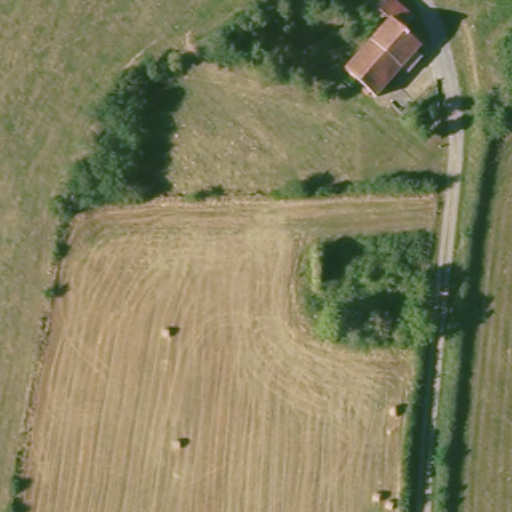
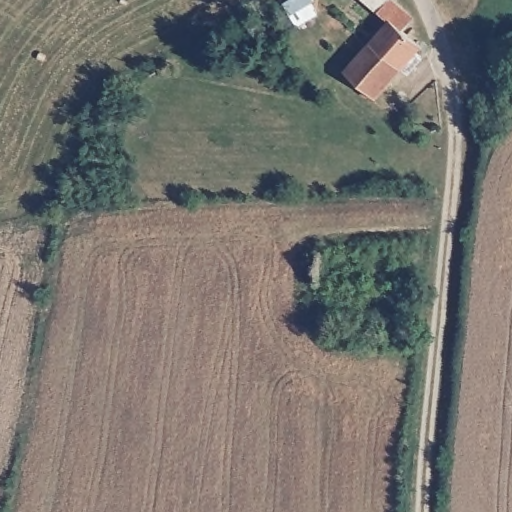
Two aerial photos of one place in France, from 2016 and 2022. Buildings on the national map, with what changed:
unchanged [(377,104),(368,95),(370,92),(366,89),(360,95),(342,82),(388,27),(379,18),(358,0),(400,0),(420,17),(411,30),(435,49),(428,56),(422,52),(377,104)]

